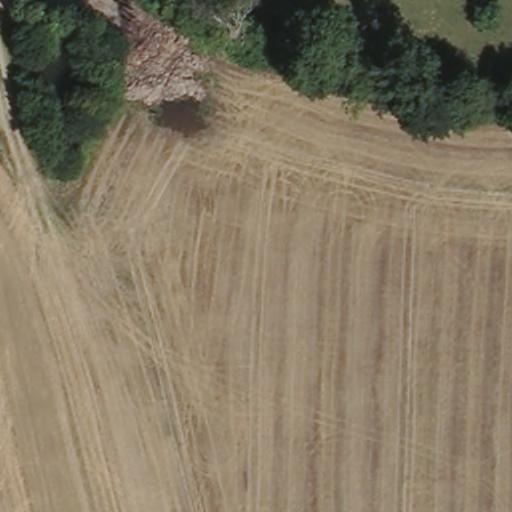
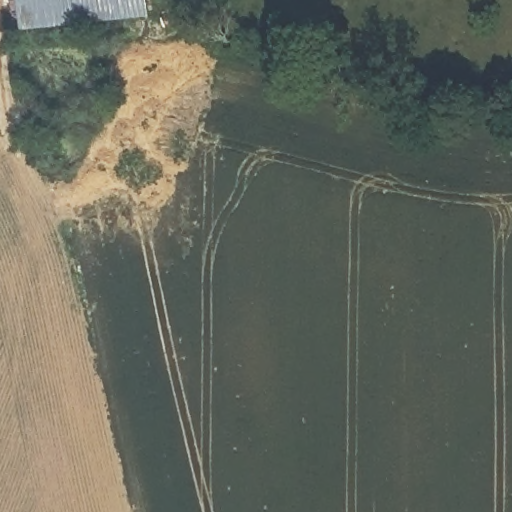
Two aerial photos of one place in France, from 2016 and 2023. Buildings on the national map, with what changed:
new [(22,34),(19,0),(120,0),(122,22),(22,34)]

